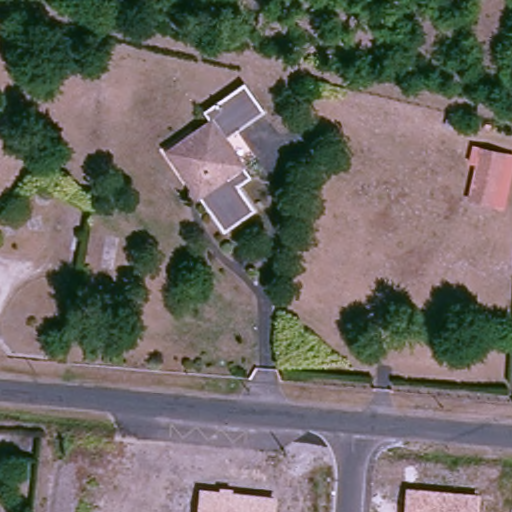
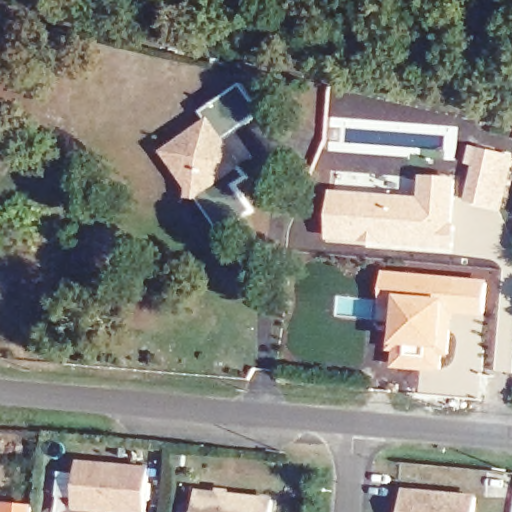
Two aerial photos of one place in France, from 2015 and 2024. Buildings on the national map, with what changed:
unchanged [(187,167),(176,151),(191,139),(185,131),(203,118),(196,108),(236,79),(256,108),(213,139),(239,175),(230,181),(248,206),(217,228),(185,183),(187,167)]
unchanged [(512,189),(509,202),(504,201),(470,195),(480,145),(512,151),(512,189)]
new [(418,196),(420,175),(457,179),(454,222),(457,233),(456,249),(327,239),(330,189),(418,196)]
new [(385,270),(492,280),(489,318),(452,316),(452,318),(450,318),(443,372),(389,367),(392,309),(383,308),(385,270)]
unchanged [(82,464),(150,471),(146,512),(107,512),(78,509),(82,464)]
unchanged [(217,492),(218,485),(233,487),(233,492),(277,498),(276,512),(198,512),(200,489),(217,492)]
unchanged [(480,495),(479,512),(405,512),(407,488),(480,495)]
new [(34,505),(34,512),(0,512),(0,511),(1,501),(34,505)]

